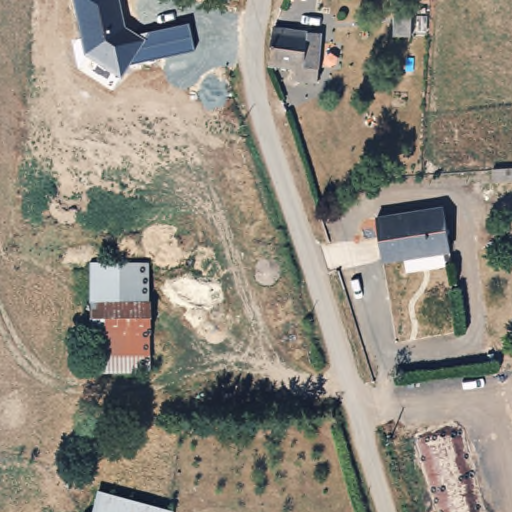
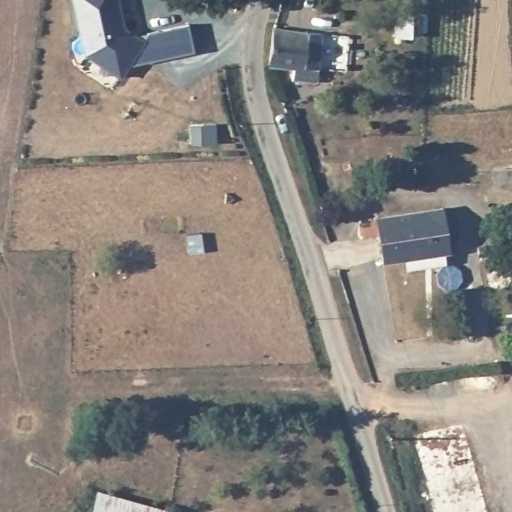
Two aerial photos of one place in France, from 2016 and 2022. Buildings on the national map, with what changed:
unchanged [(192,50),(131,64),(119,78),(84,55),(73,0),(118,0),(124,29),(137,35),(185,26),(192,50)]
new [(426,19),(427,44),(412,44),(411,19),(426,19)]
unchanged [(323,29),(317,78),(286,75),(288,60),(265,56),(266,36),(271,21),(323,29)]
unchanged [(376,215),(445,210),(449,255),(434,257),(404,259),(380,261),(376,217),(376,215)]
demolished [(145,373),(86,367),(95,272),(96,260),(109,261),(153,265),(145,373)]
unchanged [(171,512),(97,512),(94,511),(101,485),(171,510),(171,512)]
unchanged [(98,512),(94,512),(94,511),(98,512)]

